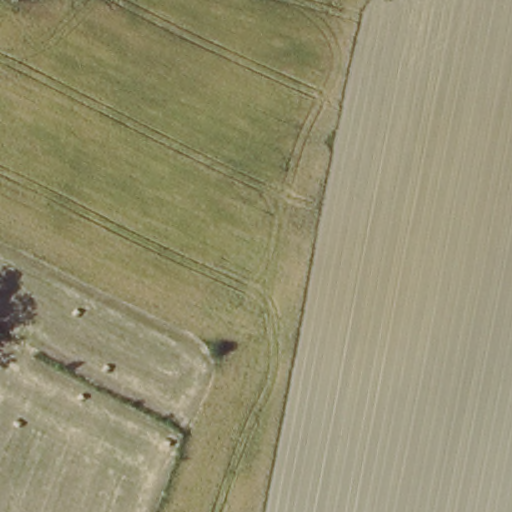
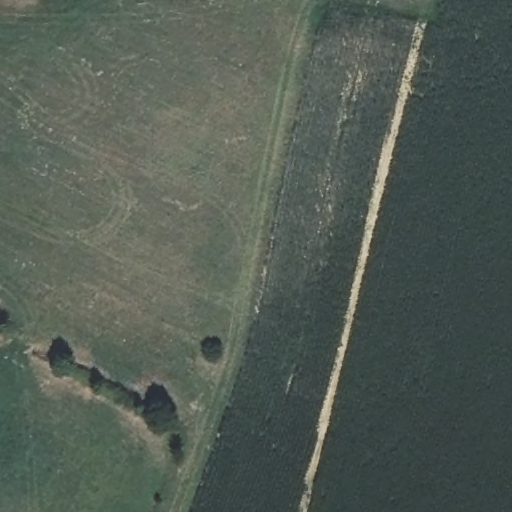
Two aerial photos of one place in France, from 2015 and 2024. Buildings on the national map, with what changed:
[]

